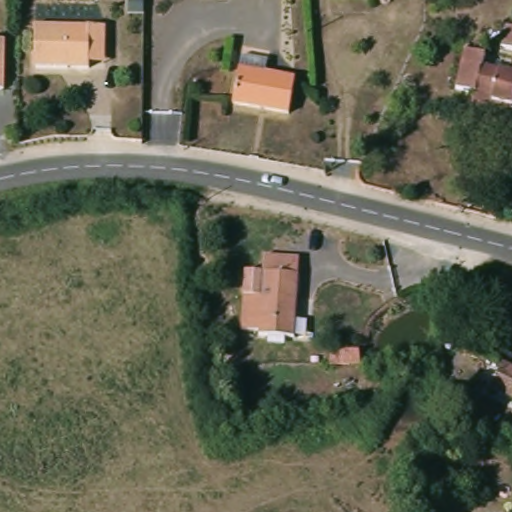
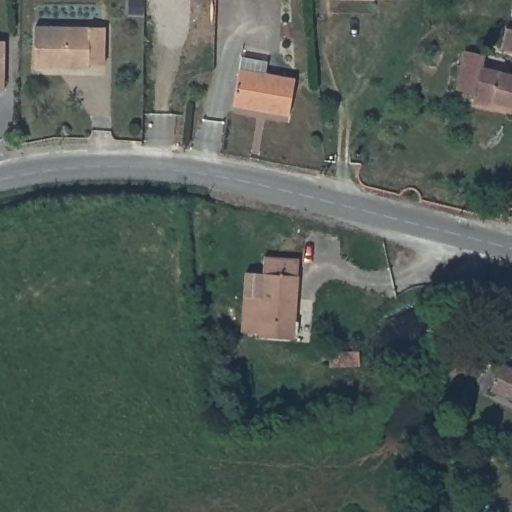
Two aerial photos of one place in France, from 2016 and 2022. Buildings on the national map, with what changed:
unchanged [(85,63),(85,70),(32,68),(31,22),(106,24),(107,40),(108,64),(85,63)]
unchanged [(506,52),(511,33),(512,33),(512,54),(506,52)]
unchanged [(0,93),(0,43),(9,44),(8,94),(0,93)]
unchanged [(475,100),(478,92),(457,87),(467,50),(488,55),(484,68),(501,72),(493,104),(475,100)]
unchanged [(266,68),(265,76),(295,80),(289,115),(235,106),(241,65),(266,68)]
unchanged [(512,75),(512,109),(493,104),(501,72),(512,75)]
unchanged [(261,293),(264,255),(303,257),(293,342),(253,337),(253,332),(236,331),(238,292),(261,293)]
unchanged [(512,367),(512,400),(496,393),(508,365),(512,367)]

